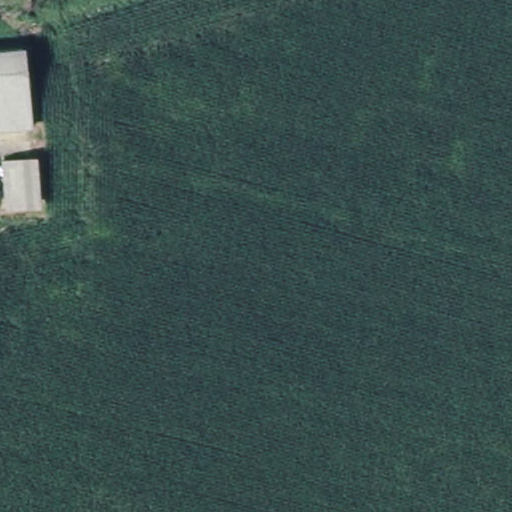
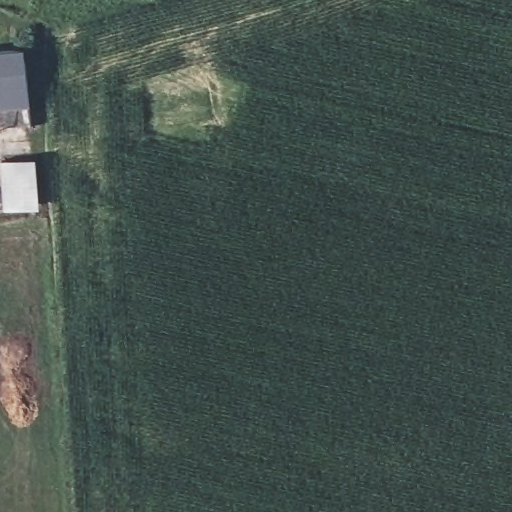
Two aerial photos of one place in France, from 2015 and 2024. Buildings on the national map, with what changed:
unchanged [(24,44),(33,128),(0,132),(0,47),(24,44)]
unchanged [(36,158),(43,210),(6,215),(0,170),(0,163),(36,158)]

